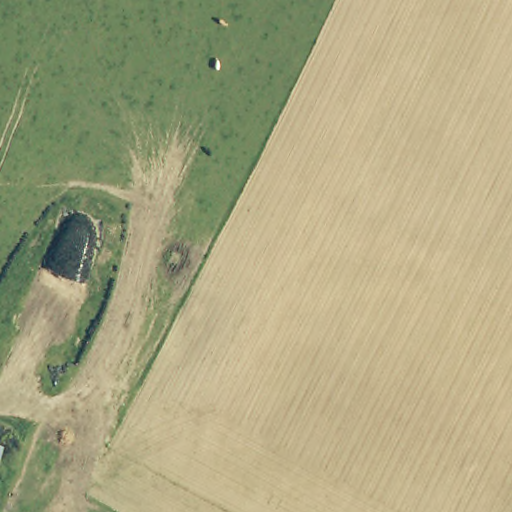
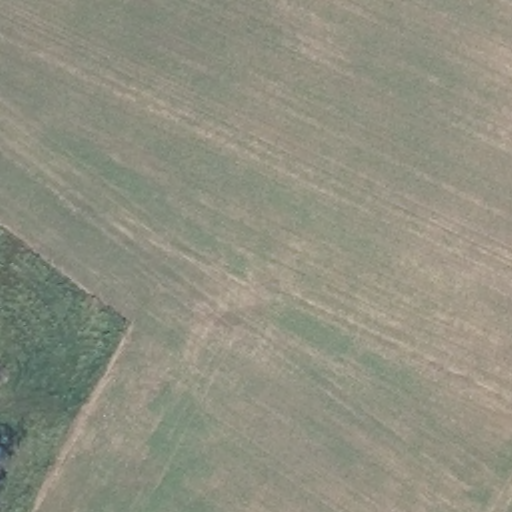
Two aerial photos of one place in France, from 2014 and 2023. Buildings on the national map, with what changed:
unchanged [(1,446),(0,449),(0,446),(1,446)]

